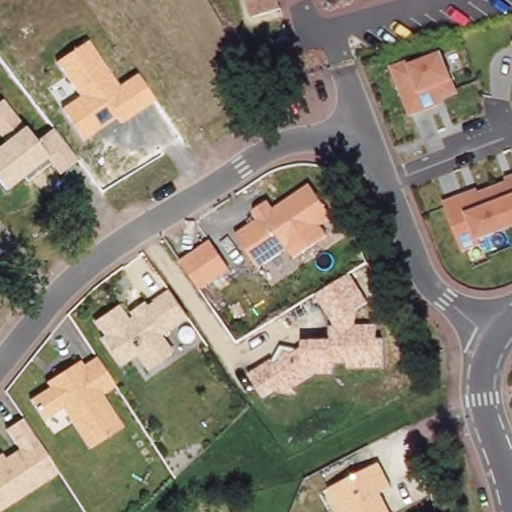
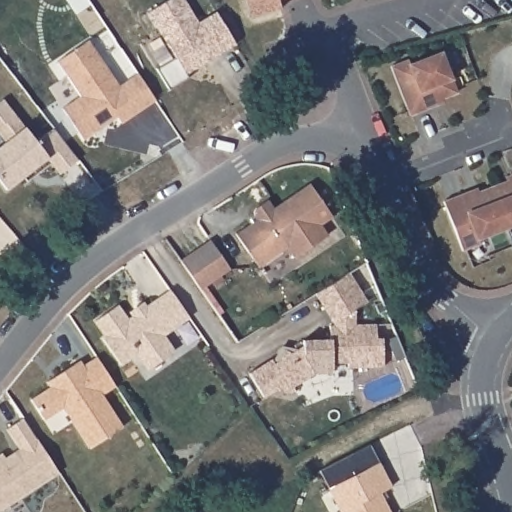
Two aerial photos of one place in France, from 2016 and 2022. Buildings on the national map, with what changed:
new [(184,0),(198,24),(217,12),(236,44),(186,74),(188,78),(169,90),(156,69),(175,57),(148,12),(169,0),(184,0)]
unchanged [(246,13),(244,0),(282,0),(282,8),(246,13)]
unchanged [(117,86),(138,73),(154,100),(119,124),(115,119),(81,140),(61,107),(78,96),(56,62),(89,42),(117,86)]
unchanged [(459,93),(409,115),(387,70),(439,49),(459,93)]
unchanged [(0,144),(0,143),(0,101),(2,100),(34,142),(51,129),(76,162),(57,177),(46,164),(6,192),(0,183),(0,144)]
unchanged [(512,228),(477,241),(472,231),(455,237),(443,202),(512,174),(512,228)]
unchanged [(256,219),(251,211),(268,199),(273,207),(310,184),(332,219),(322,225),(328,236),(292,257),(286,248),(256,267),(235,233),(256,219)]
unchanged [(199,289),(181,260),(210,240),(230,268),(199,289)]
unchanged [(366,301),(354,309),(354,326),(376,325),(377,338),(383,338),(384,370),(346,371),(346,364),(330,365),(331,375),(313,375),(291,388),(295,394),(274,390),(261,397),(248,375),(271,361),(280,345),(297,350),(302,346),(302,340),(328,340),(328,327),(336,327),(313,297),(348,272),(366,301)]
unchanged [(145,372),(137,357),(123,366),(95,322),(119,305),(128,317),(131,315),(130,312),(144,302),(146,307),(170,292),(188,317),(164,333),(175,352),(145,372)]
unchanged [(87,448),(62,408),(42,421),(28,399),(45,387),(43,382),(80,358),(84,364),(96,357),(115,387),(103,395),(121,427),(87,448)]
unchanged [(0,510),(0,454),(3,452),(6,456),(17,450),(6,428),(24,417),(57,472),(0,510)]
unchanged [(394,495),(382,502),(387,512),(338,512),(325,489),(378,465),(394,495)]

